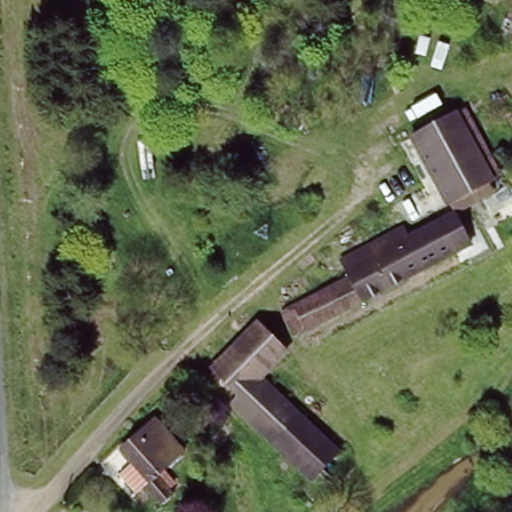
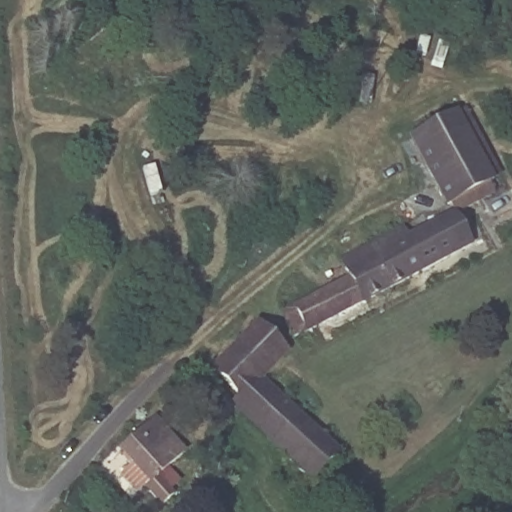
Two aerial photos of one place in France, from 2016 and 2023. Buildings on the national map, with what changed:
unchanged [(496,183),(500,191),(458,215),(452,218),(449,207),(410,135),(458,111),(496,183)]
unchanged [(407,228),(413,239),(452,218),(458,215),(475,245),(297,340),(285,315),(353,279),(345,261),(407,228)]
unchanged [(284,347),(240,396),(214,370),(257,326),(284,347)]
unchanged [(338,449),(312,478),(240,408),(252,396),(258,403),(273,385),(338,449)]
unchanged [(128,476),(142,464),(131,451),(162,419),(190,449),(166,475),(180,492),(169,502),(153,487),(145,494),(128,476)]

